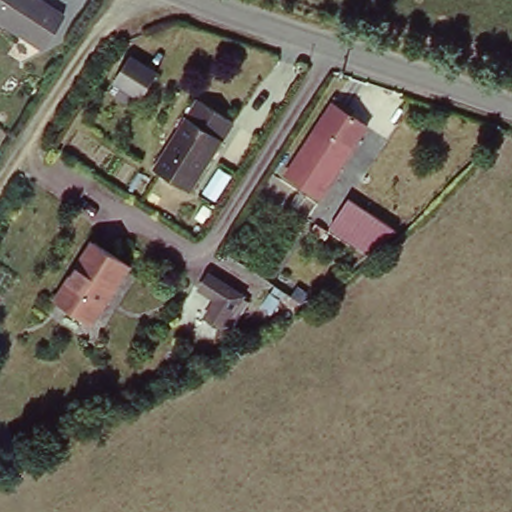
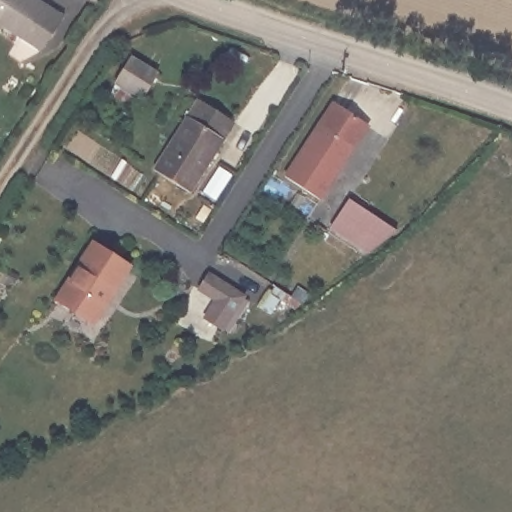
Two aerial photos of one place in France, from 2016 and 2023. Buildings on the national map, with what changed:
unchanged [(64,12),(40,49),(0,23),(0,0),(44,0),(64,12)]
unchanged [(196,97),(235,121),(188,191),(151,167),(196,97)]
unchanged [(333,105),(367,127),(318,200),(285,178),(333,105)]
unchanged [(328,224),(347,196),(390,221),(380,233),(366,246),(328,224)]
unchanged [(97,242),(130,265),(91,323),(57,302),(97,242)]
unchanged [(211,271),(246,293),(224,328),(206,316),(219,296),(201,285),(211,271)]
unchanged [(286,288),(291,280),(305,288),(300,297),(286,288)]

